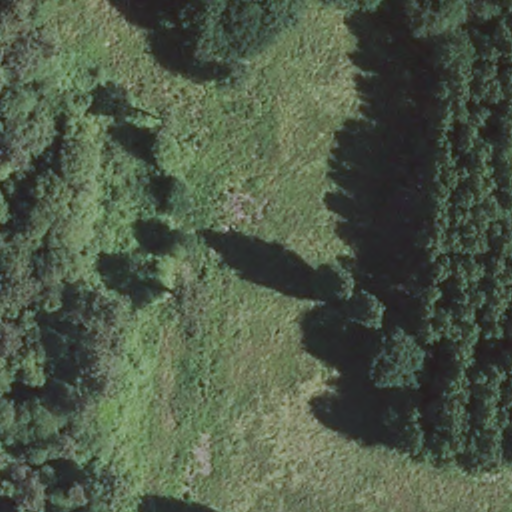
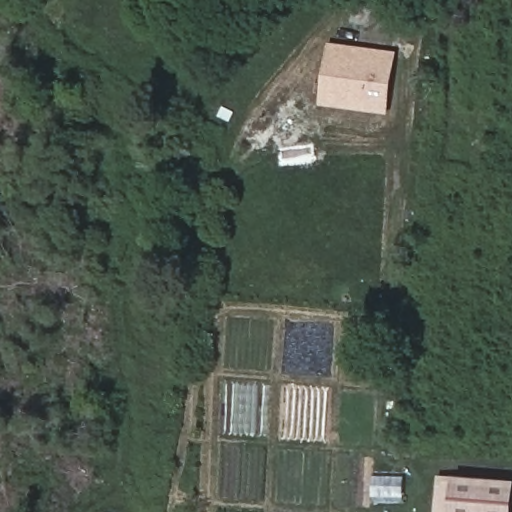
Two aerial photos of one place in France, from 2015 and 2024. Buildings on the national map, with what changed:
new [(319,108),(328,44),(397,53),(388,117),(319,108)]
new [(512,484),(512,512),(454,512),(456,480),(512,484)]

